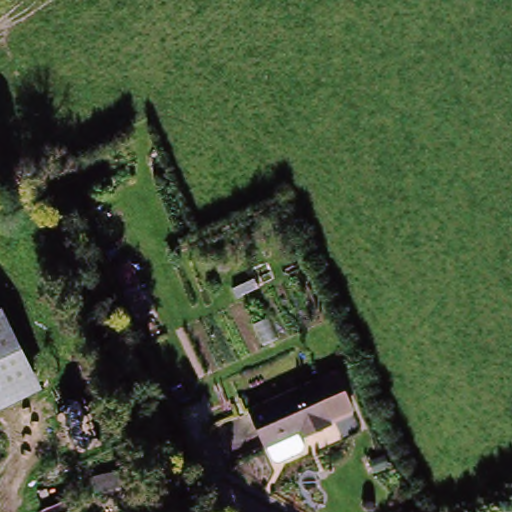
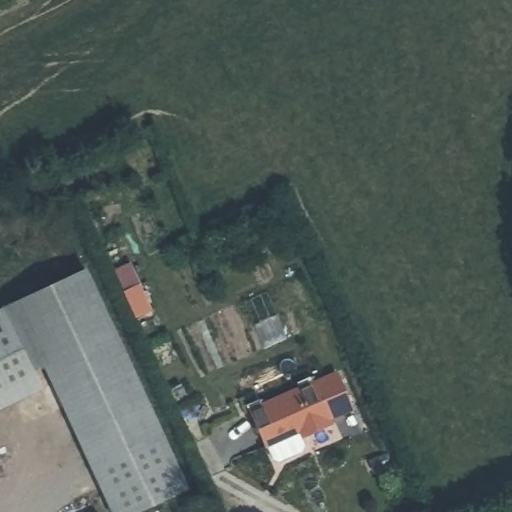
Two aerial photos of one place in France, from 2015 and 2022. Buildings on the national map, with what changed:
new [(191,497),(158,512),(114,512),(14,303),(84,272),(191,497)]
unchanged [(159,314),(143,321),(131,295),(146,288),(159,314)]
unchanged [(43,390),(0,411),(0,311),(1,310),(43,390)]
unchanged [(337,372),(353,410),(329,420),(313,382),(337,372)]
unchanged [(329,420),(332,425),(300,438),(304,451),(274,463),(249,409),(313,380),(313,382),(329,420)]

